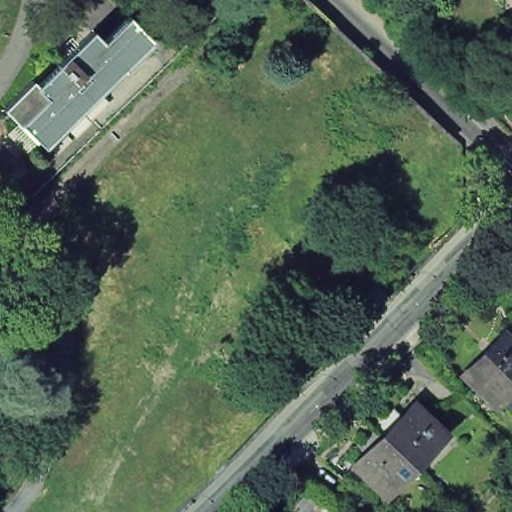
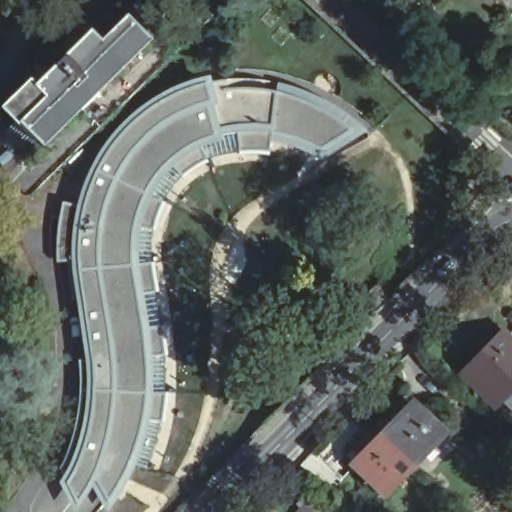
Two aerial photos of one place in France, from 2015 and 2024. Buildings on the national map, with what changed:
unchanged [(501,0),(512,0),(512,15),(501,0)]
unchanged [(30,84),(36,88),(92,34),(102,44),(127,19),(152,44),(43,151),(37,145),(35,146),(2,112),(30,84)]
new [(203,148),(208,161),(197,168),(185,178),(173,167),(170,170),(155,187),(150,197),(165,203),(160,214),(155,232),(141,230),(139,246),(140,265),(152,264),(157,291),(144,293),(149,323),(150,329),(164,327),(167,355),(152,357),(154,372),(152,393),(167,395),(163,423),(148,421),(142,446),(133,467),(122,491),(107,512),(93,485),(87,496),(75,510),(58,483),(69,466),(75,452),(80,434),(85,413),(86,392),(85,367),(83,347),(79,319),(73,283),(70,260),(58,260),(58,250),(60,229),(63,204),(77,207),(84,183),(93,164),(105,141),(121,122),(142,106),(165,91),(185,81),(210,76),(212,83),(225,80),(225,91),(240,90),(257,90),(275,93),(278,83),(295,86),(310,91),(327,100),(340,109),(355,120),(364,128),(322,160),(302,150),(283,144),(270,142),(270,155),(238,154),(239,133),(222,135),(222,141),(203,148)]
unchanged [(362,301),(376,286),(390,300),(375,314),(362,301)]
unchanged [(501,399),(500,398),(497,403),(472,378),(475,374),(468,368),(503,332),(508,336),(512,332),(512,410),(501,399)]
unchanged [(363,456),(354,446),(373,427),(392,407),(402,417),(415,404),(443,432),(412,464),(383,493),(355,465),(363,456)]
unchanged [(512,427),(512,439),(507,435),(512,427)]
unchanged [(335,512),(298,512),(303,507),(298,503),(309,490),(322,499),(332,509),(335,512)]

